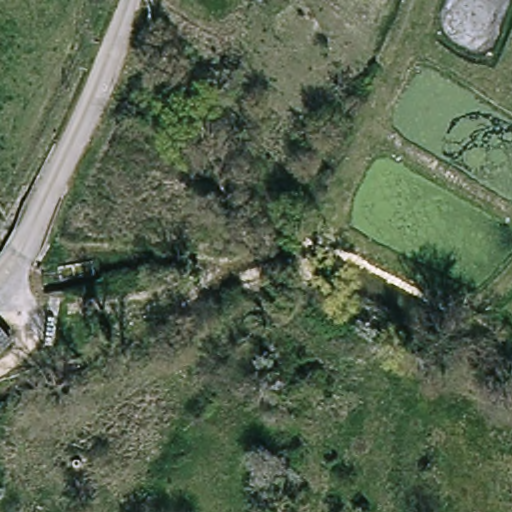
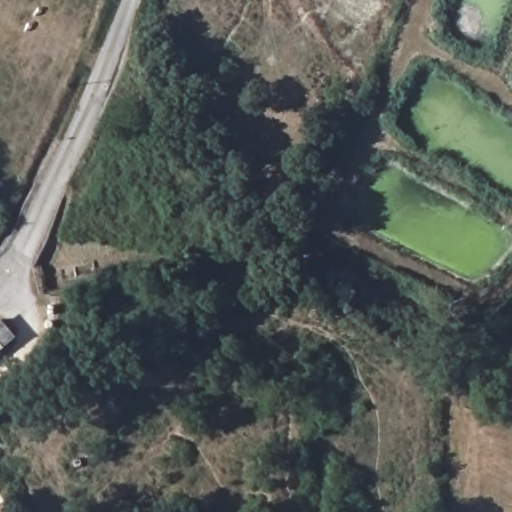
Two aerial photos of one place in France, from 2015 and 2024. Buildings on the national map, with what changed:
unchanged [(0,350),(0,321),(13,340),(0,350)]

